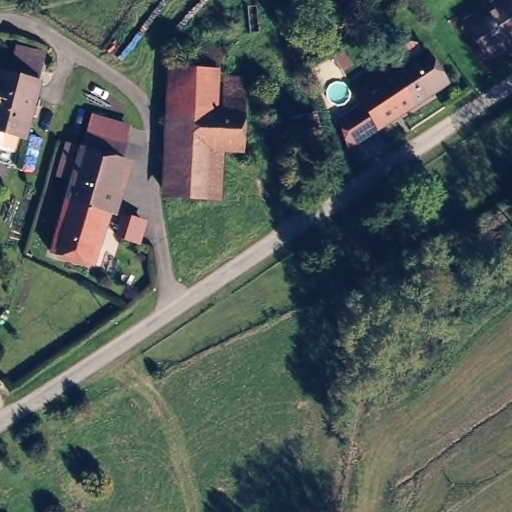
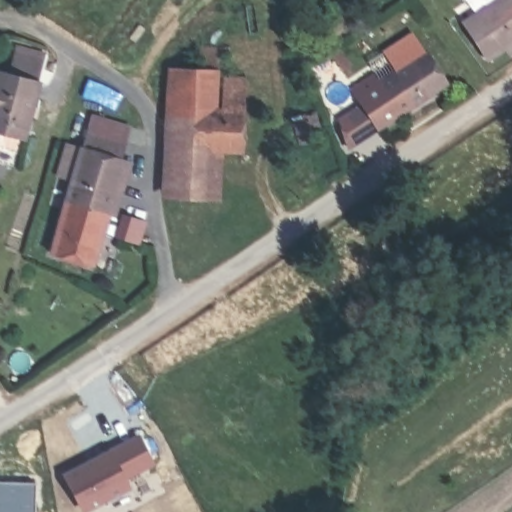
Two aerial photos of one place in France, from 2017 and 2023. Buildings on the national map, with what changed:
unchanged [(485,0),(512,0),(512,44),(484,57),(459,15),(485,0)]
unchanged [(346,83),(373,66),(379,76),(426,39),(453,84),(377,128),(346,83)]
unchanged [(0,133),(0,65),(4,66),(11,42),(42,50),(26,139),(0,133)]
unchanged [(243,149),(213,148),(211,195),(170,194),(179,86),(191,87),(193,69),(218,71),(216,107),(226,108),(227,90),(246,91),(243,149)]
unchanged [(89,262),(49,250),(88,127),(123,138),(118,159),(121,160),(89,262)]
new [(60,472),(109,447),(139,432),(155,464),(126,478),(131,488),(85,512),(81,512),(60,472)]
new [(36,481),(36,512),(0,512),(0,480),(36,481)]

